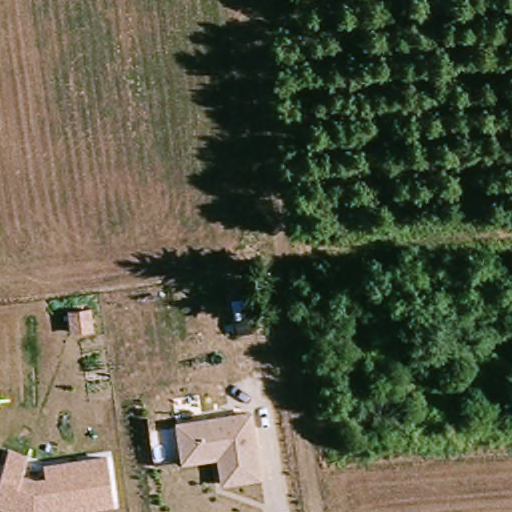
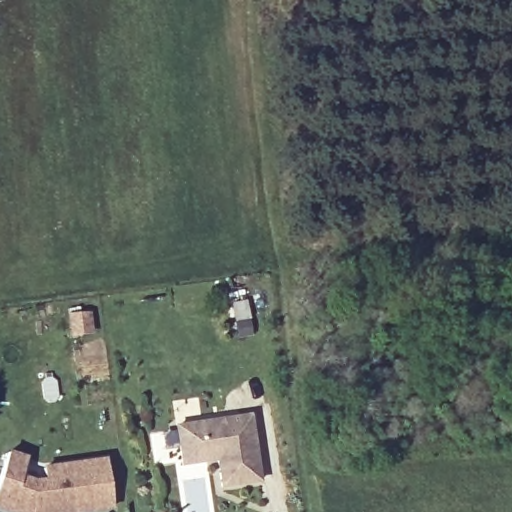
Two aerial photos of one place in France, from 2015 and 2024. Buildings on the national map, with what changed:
unchanged [(93,309),(97,336),(69,338),(67,313),(93,309)]
unchanged [(252,411),(264,483),(219,489),(215,462),(181,467),(174,424),(252,411)]
unchanged [(23,475),(36,479),(46,480),(46,463),(108,456),(115,509),(92,512),(10,512),(0,509),(0,477),(9,449),(29,455),(23,475)]

